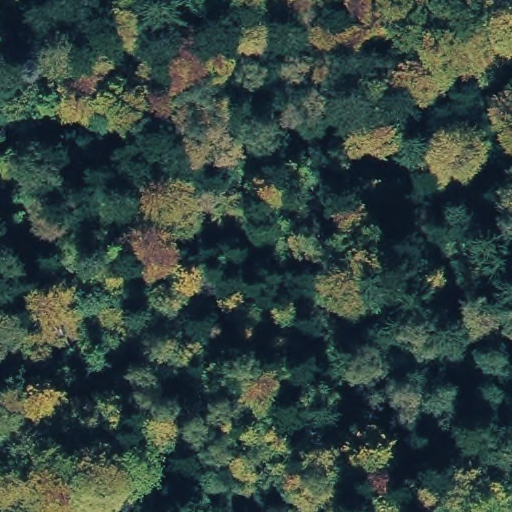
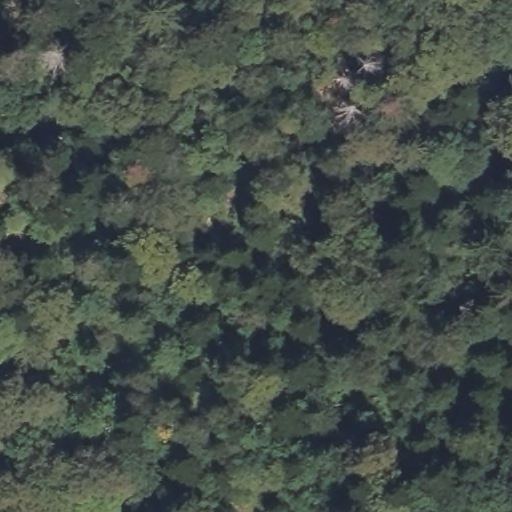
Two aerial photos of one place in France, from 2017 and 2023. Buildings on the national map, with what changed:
unchanged [(188,484),(180,504),(161,496),(168,476),(188,484)]

